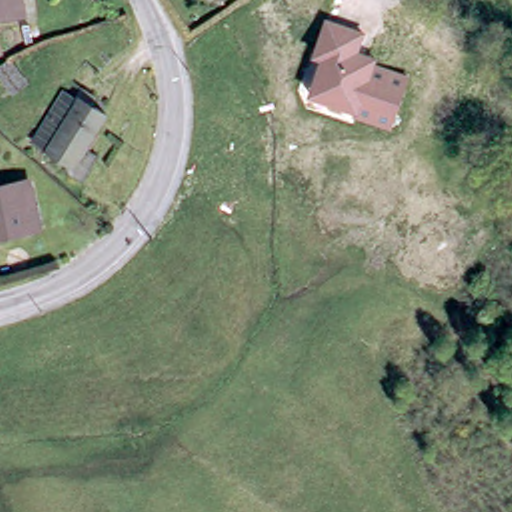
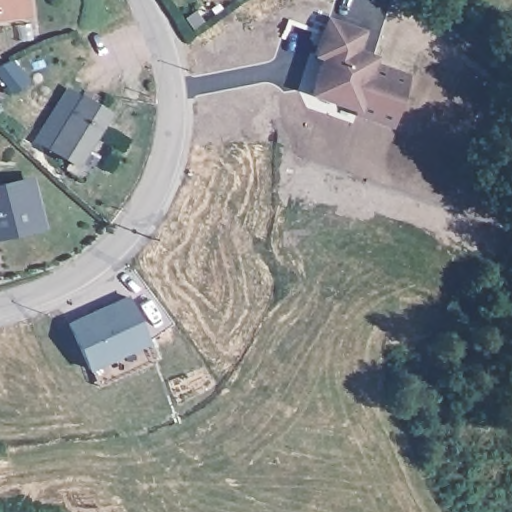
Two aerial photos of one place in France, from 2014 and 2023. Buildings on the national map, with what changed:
unchanged [(0,19),(0,0),(25,0),(27,14),(0,19)]
unchanged [(409,74),(393,129),(356,117),(358,111),(309,95),(321,59),(312,56),(326,16),(366,31),(359,51),(379,56),(377,61),(409,74)]
unchanged [(25,81),(15,89),(1,73),(13,68),(25,81)]
unchanged [(85,181),(80,178),(76,165),(36,140),(68,89),(80,99),(89,86),(99,93),(93,103),(109,113),(94,137),(90,144),(99,149),(103,151),(85,181)]
unchanged [(41,227),(0,236),(0,192),(30,185),(41,227)]
new [(129,294),(150,340),(91,366),(71,320),(129,294)]

